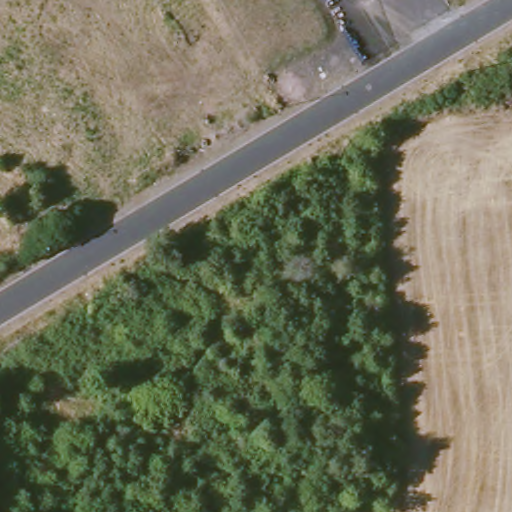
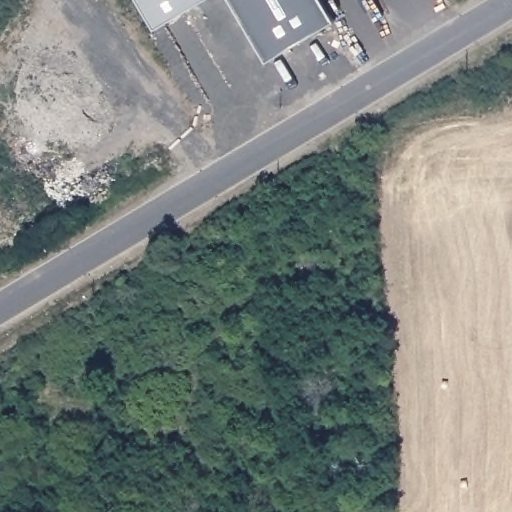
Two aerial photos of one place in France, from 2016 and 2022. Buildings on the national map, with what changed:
new [(133,0),(205,0),(152,34),(133,0)]
new [(268,64),(230,0),(323,0),(336,23),(268,64)]

